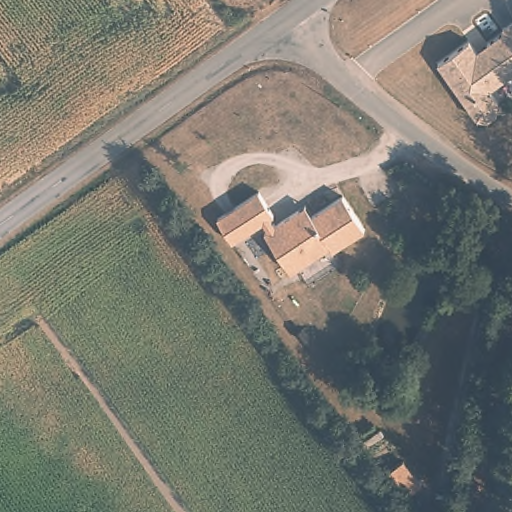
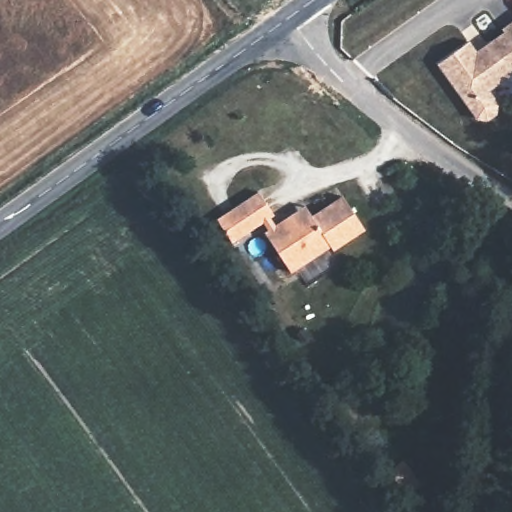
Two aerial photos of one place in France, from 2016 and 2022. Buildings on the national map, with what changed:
unchanged [(479,47),(507,27),(504,25),(512,19),(512,72),(491,87),(500,100),(499,110),(489,116),(479,115),(440,59),(472,37),(479,47)]
unchanged [(277,207),(273,210),(278,219),(300,202),(307,197),(314,208),(344,187),(368,220),(337,241),(334,237),(295,265),(268,225),(272,222),(266,215),(235,236),(220,214),(260,185),(277,207)]

